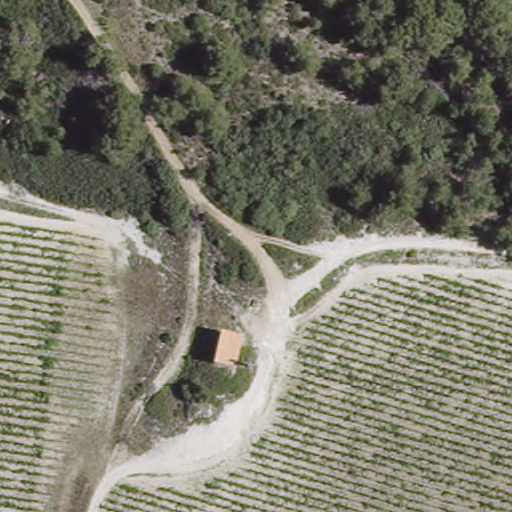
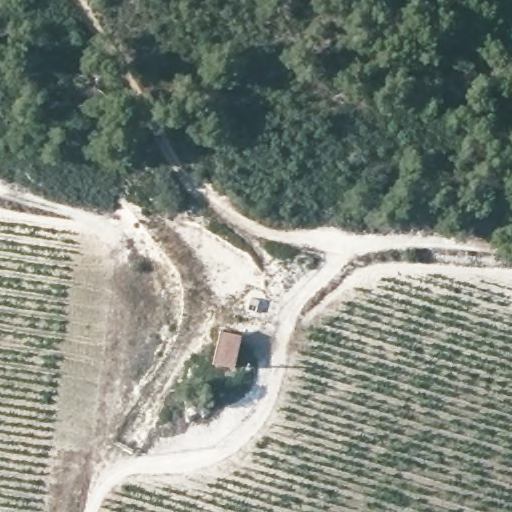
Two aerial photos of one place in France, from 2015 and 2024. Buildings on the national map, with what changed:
unchanged [(242,339),(235,371),(214,367),(221,333),(242,339)]

